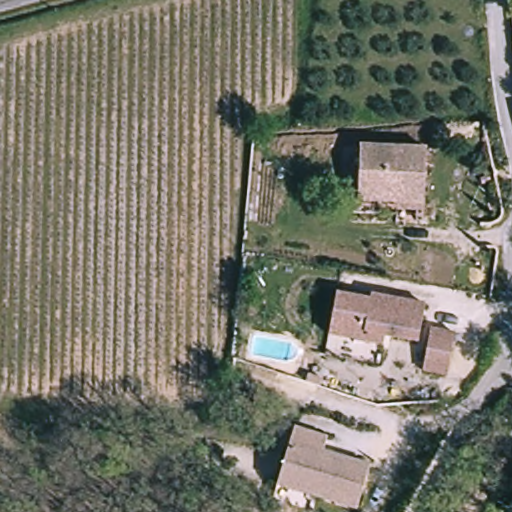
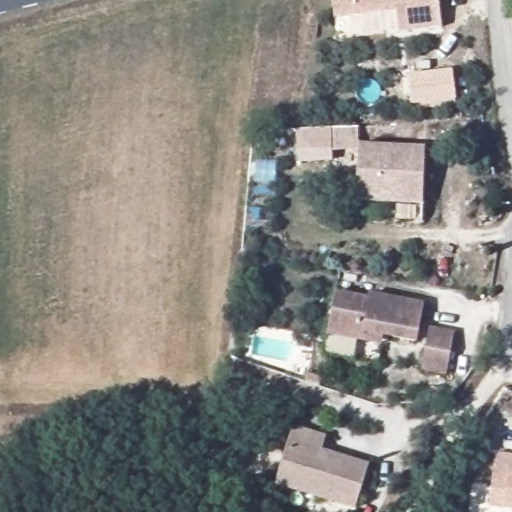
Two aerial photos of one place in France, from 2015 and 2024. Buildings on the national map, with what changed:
new [(334,20),(331,0),(438,0),(442,26),(399,32),(397,12),(334,20)]
new [(457,100),(412,106),(407,75),(453,69),(457,100)]
new [(355,150),(326,151),(325,129),(354,127),(355,150)]
unchanged [(359,195),(355,142),(420,144),(420,197),(359,195)]
unchanged [(364,340),(329,334),(336,292),(370,298),(370,293),(425,302),(419,340),(385,335),(384,343),(364,340)]
unchanged [(455,330),(449,372),(424,367),(431,326),(455,330)]
unchanged [(340,439),(337,453),(372,465),(359,505),(281,481),(297,426),(340,439)]
new [(512,507),(488,505),(493,455),(512,456),(512,507)]

